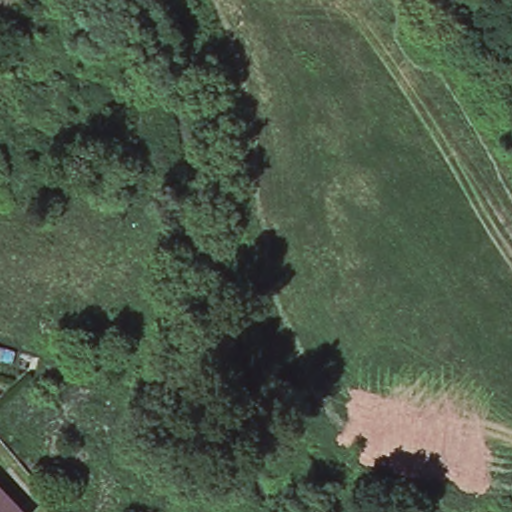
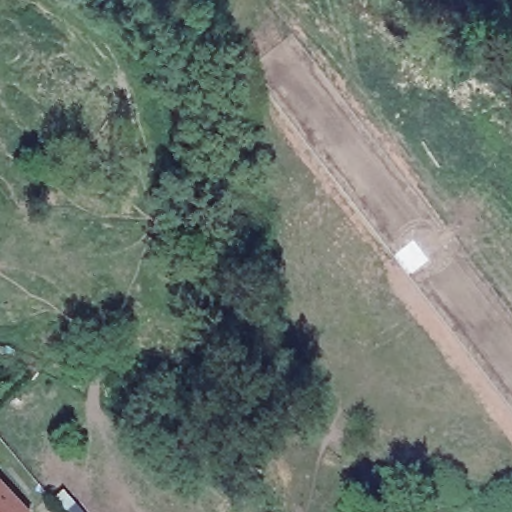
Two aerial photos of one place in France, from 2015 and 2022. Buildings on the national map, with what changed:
unchanged [(0,512),(0,488),(22,512),(0,512)]

